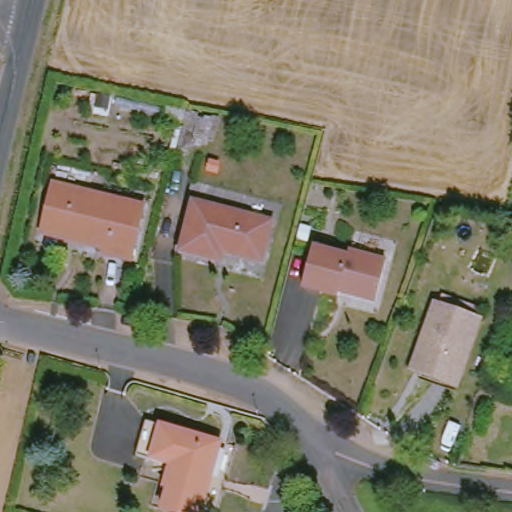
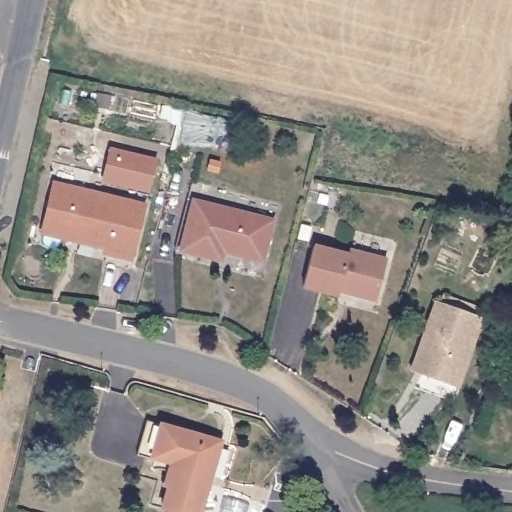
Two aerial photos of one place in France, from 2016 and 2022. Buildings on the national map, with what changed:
new [(101,180),(110,146),(157,159),(149,192),(101,180)]
unchanged [(44,225),(54,184),(144,205),(131,258),(105,252),(106,247),(78,241),(43,232),(44,225)]
unchanged [(223,250),(221,259),(182,249),(195,202),(272,221),(264,253),(262,260),(223,250)]
unchanged [(354,260),(355,255),(393,265),(392,267),(382,305),(344,295),(343,300),(308,291),(319,251),(354,260)]
unchanged [(424,351),(441,304),(485,320),(462,385),(431,374),(418,370),(424,351)]
unchanged [(206,512),(181,512),(168,508),(181,465),(156,459),(142,455),(152,420),(167,424),(226,441),(206,512)]

